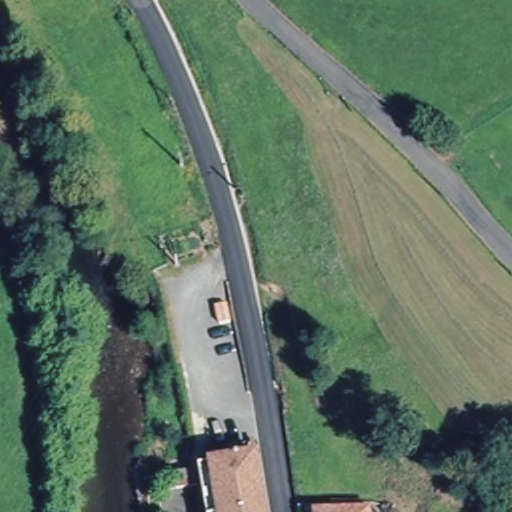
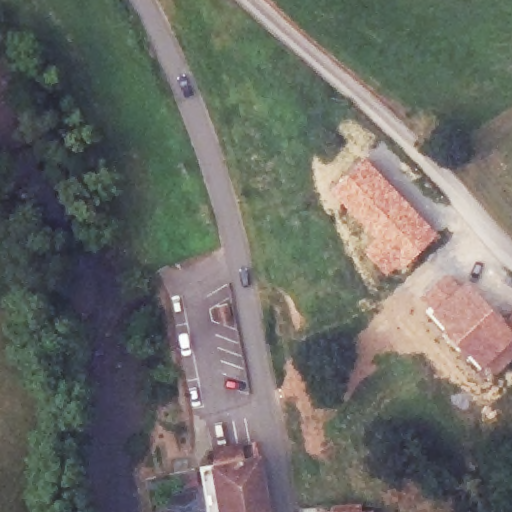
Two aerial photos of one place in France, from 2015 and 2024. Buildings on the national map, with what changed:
new [(364,154),(438,234),(408,261),(387,277),(363,249),(373,237),(329,189),(364,154)]
demolished [(204,209),(207,227),(193,229),(190,210),(204,209)]
new [(503,318),(512,311),(512,359),(493,377),(457,343),(429,310),(419,297),(449,270),(460,282),(463,279),(503,318)]
unchanged [(230,313),(232,332),(218,333),(215,315),(230,313)]
unchanged [(216,512),(210,476),(222,474),(221,457),(247,455),(249,470),(249,471),(264,469),(269,512),(216,512)]
unchanged [(178,478),(189,478),(201,477),(202,487),(189,487),(180,488),(178,478)]
unchanged [(350,508),(349,512),(336,512),(337,507),(350,508)]

